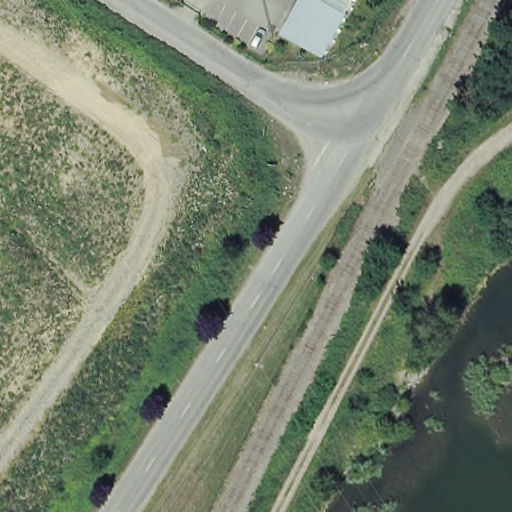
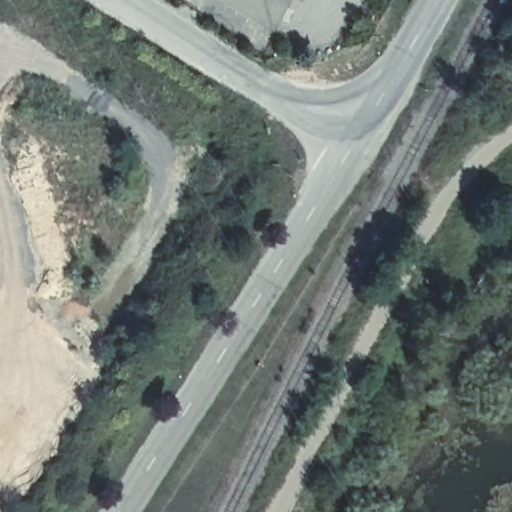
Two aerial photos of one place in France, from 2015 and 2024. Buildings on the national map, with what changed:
unchanged [(284,34),(302,0),(360,0),(328,59),(284,34)]

